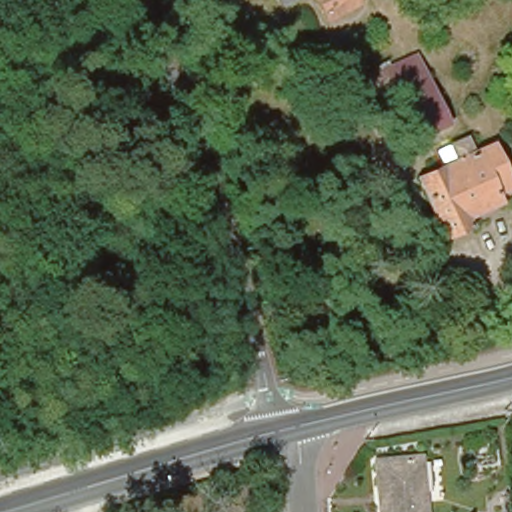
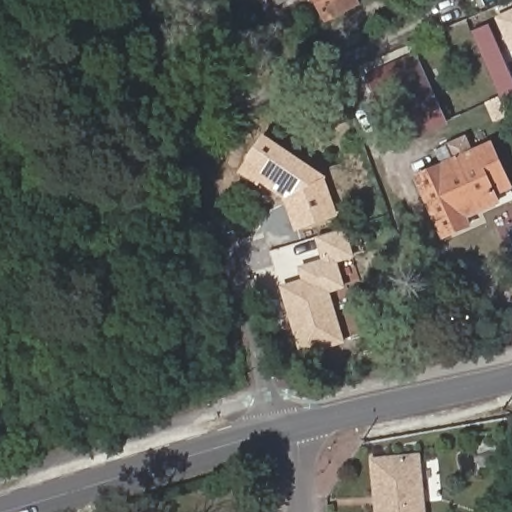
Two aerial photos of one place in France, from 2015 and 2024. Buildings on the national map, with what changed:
unchanged [(322,0),(345,0),(327,10),(322,0)]
new [(494,17),(512,10),(512,52),(510,53),(494,17)]
new [(512,78),(512,101),(504,105),(508,117),(494,122),(486,102),(499,97),(473,32),(489,25),(512,78)]
unchanged [(442,117),(396,136),(369,76),(414,56),(442,117)]
new [(325,178),(339,217),(297,234),(284,200),(240,172),(264,137),(325,178)]
unchanged [(411,179),(451,161),(444,146),(461,139),(468,154),(486,146),(506,190),(489,199),(493,205),(461,220),(464,229),(439,240),(411,179)]
new [(317,238),(346,230),(354,258),(339,263),(346,289),(330,293),(345,343),(301,355),(280,287),(302,280),(298,267),(323,260),(317,238)]
unchanged [(377,506),(382,505),(378,460),(417,457),(422,512),(378,512),(377,506)]

